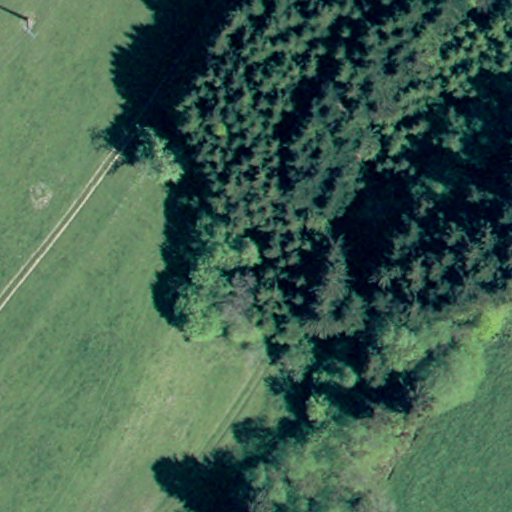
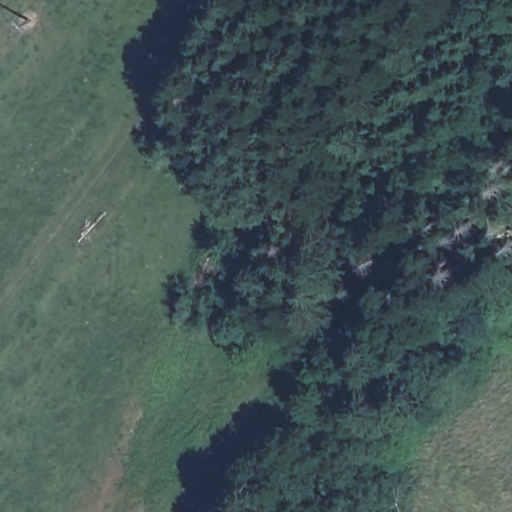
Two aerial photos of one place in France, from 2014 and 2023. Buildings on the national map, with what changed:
unchanged [(247,508),(244,512),(235,512),(240,504),(247,508)]

